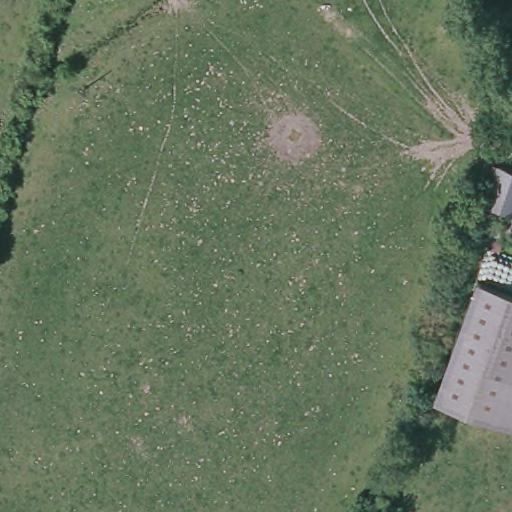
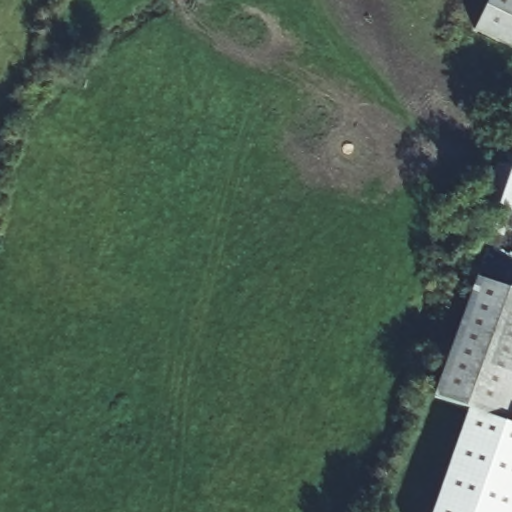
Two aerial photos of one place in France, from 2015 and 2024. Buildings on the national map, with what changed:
new [(494,0),(512,0),(512,49),(478,33),(494,0)]
unchanged [(497,250),(457,238),(482,160),(512,170),(512,205),(497,250)]
unchanged [(505,229),(512,205),(512,232),(505,229)]
unchanged [(432,405),(470,284),(512,298),(512,431),(432,405)]
new [(465,416),(512,431),(512,512),(433,512),(465,416)]

